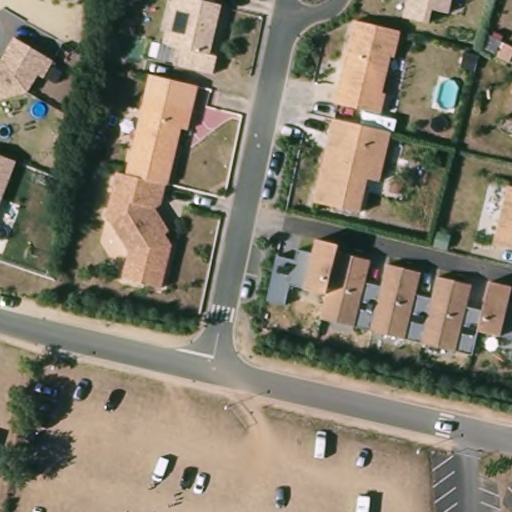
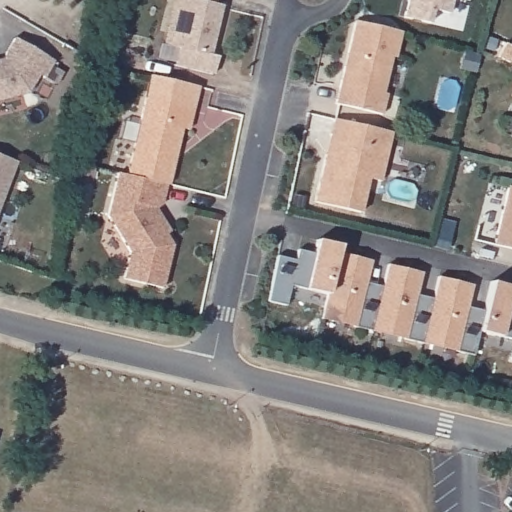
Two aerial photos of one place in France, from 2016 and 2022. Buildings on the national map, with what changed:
unchanged [(218,4),(226,5),(214,54),(221,56),(217,74),(178,65),(182,48),(173,46),(184,0),(220,0),(218,4)]
unchanged [(454,14),(438,10),(434,24),(409,18),(413,0),(457,0),(454,14)]
unchanged [(396,57),(387,94),(390,95),(385,115),(340,104),(349,67),(353,51),(360,21),(405,32),(399,58),(396,57)]
unchanged [(17,36),(55,60),(45,78),(38,74),(26,92),(0,99),(0,58),(3,57),(17,36)]
unchanged [(148,180),(127,175),(144,98),(190,108),(187,129),(182,128),(169,185),(148,180)]
unchanged [(348,122),(395,133),(384,182),(372,179),(364,213),(318,202),(329,156),(334,137),(338,119),(348,122)]
unchanged [(0,208),(0,154),(17,160),(0,208)]
unchanged [(158,210),(172,231),(168,234),(175,245),(165,288),(126,279),(132,252),(103,245),(110,216),(120,173),(127,175),(148,180),(169,185),(164,205),(158,210)]
unchanged [(499,247),(512,197),(512,250),(499,247)]
unchanged [(294,259),(295,251),(312,254),(316,241),(338,245),(339,244),(337,256),(372,261),(369,281),(382,284),(387,264),(422,273),(417,295),(433,298),(437,278),(474,287),(469,306),(483,310),(488,282),(512,288),(512,296),(511,301),(512,301),(512,341),(501,338),(478,333),(473,355),(320,318),(325,291),(303,288),(289,285),(285,307),(267,302),(277,255),(294,259)]

